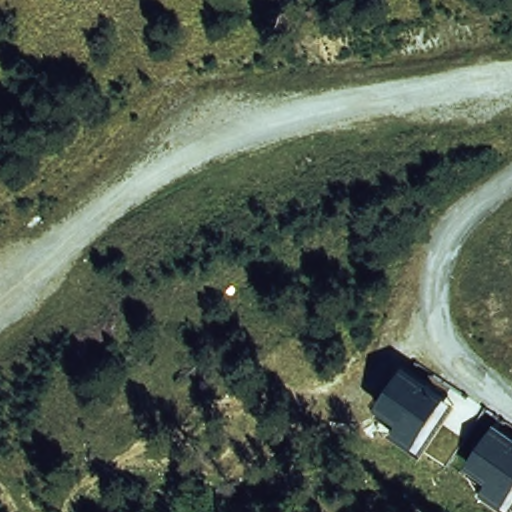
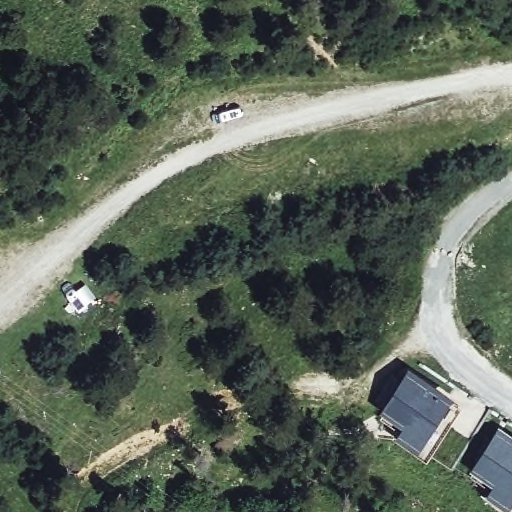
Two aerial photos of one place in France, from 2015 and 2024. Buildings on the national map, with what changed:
unchanged [(385,419),(416,373),(454,397),(423,444),(385,419)]
unchanged [(512,437),(512,504),(475,478),(505,432),(512,437)]

